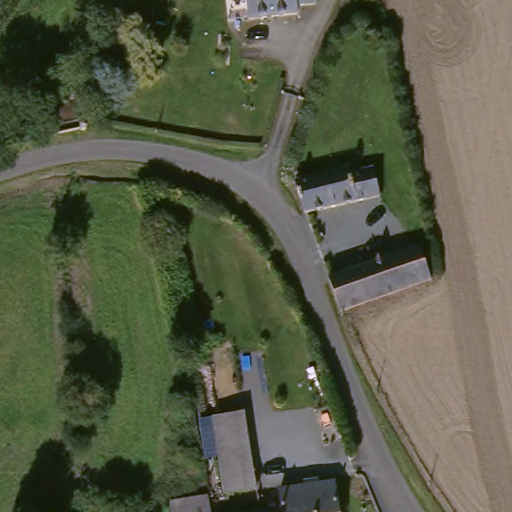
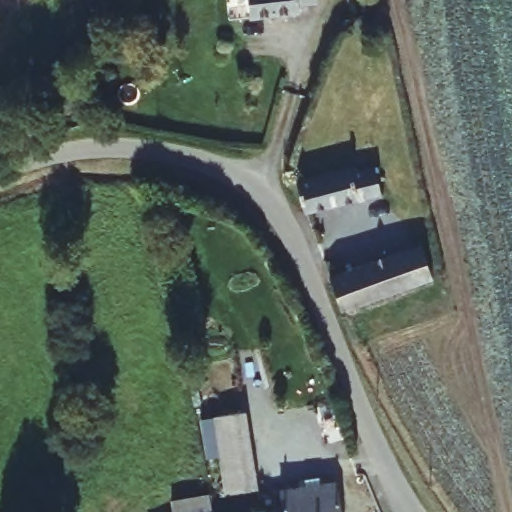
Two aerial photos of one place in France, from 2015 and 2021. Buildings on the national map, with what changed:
unchanged [(256,15),(249,15),(247,0),(311,0),(300,1),(301,11),(256,15)]
unchanged [(306,211),(297,183),(374,166),(380,193),(306,211)]
unchanged [(342,312),(330,278),(420,245),(433,278),(342,312)]
unchanged [(266,494),(222,497),(213,422),(258,417),(266,494)]
unchanged [(214,493),(216,492),(218,512),(178,512),(176,496),(214,493)]
unchanged [(345,498),(347,512),(291,512),(290,504),(345,498)]

